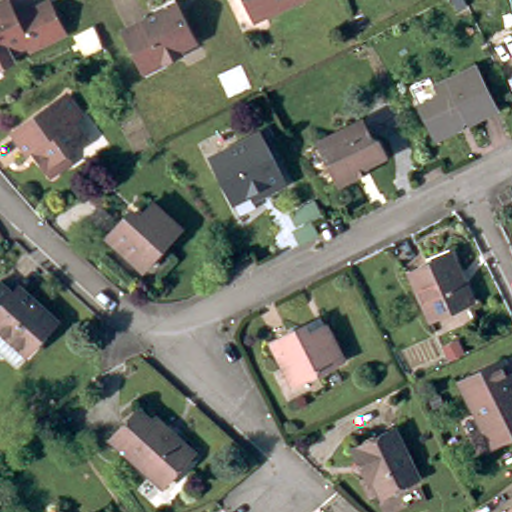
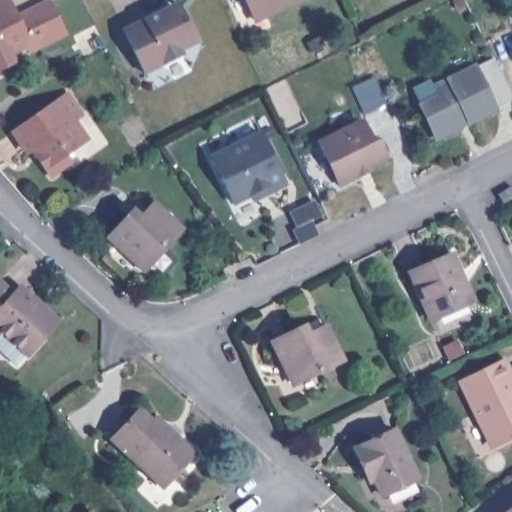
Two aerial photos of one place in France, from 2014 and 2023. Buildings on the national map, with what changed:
unchanged [(242,0),(292,0),(253,21),(242,0)]
unchanged [(185,47),(186,51),(185,51),(172,57),(169,59),(166,53),(145,62),(132,36),(128,28),(129,28),(149,19),(149,18),(149,16),(175,4),(182,1),(186,9),(200,39),(185,47)]
unchanged [(12,59),(10,65),(1,70),(0,70),(0,5),(6,2),(15,19),(30,11),(47,2),(64,34),(31,51),(28,46),(11,55),(12,59)]
unchanged [(430,131),(415,101),(435,92),(430,84),(473,63),(495,105),(466,120),(433,136),(430,131)]
unchanged [(82,140),(60,156),(65,164),(47,176),(29,150),(23,153),(10,134),(62,97),(76,116),(69,121),(82,140)]
unchanged [(361,174),(340,184),(334,172),(325,154),(318,139),(346,126),(354,129),(367,122),(375,135),(378,133),(387,154),(368,164),(370,169),(361,174)]
unchanged [(280,185),(258,195),(257,193),(250,196),(245,194),(226,204),(205,158),(255,134),(280,185)]
unchanged [(504,192),(512,187),(512,198),(509,200),(504,192)]
unchanged [(128,209),(135,215),(150,199),(180,226),(141,268),(105,235),(128,209)]
unchanged [(432,317),(410,268),(447,252),(454,249),(466,278),(475,297),(432,317)]
unchanged [(39,335),(25,352),(0,332),(0,292),(5,295),(10,288),(45,317),(50,321),(39,335)]
unchanged [(297,327),(300,333),(320,324),(338,360),(290,385),(268,341),(297,327)]
unchanged [(460,378),(503,356),(512,374),(512,435),(493,444),(460,378)]
unchanged [(161,483),(110,437),(136,407),(148,418),(152,413),(169,429),(191,449),(161,483)]
unchanged [(363,468),(353,448),(395,428),(418,476),(383,495),(375,478),(370,481),(363,468)]
unchanged [(512,505),(512,512),(502,512),(512,505)]
unchanged [(90,512),(86,512),(89,510),(90,512)]

